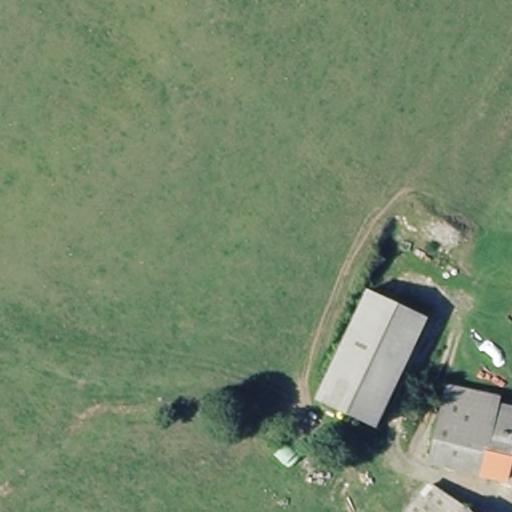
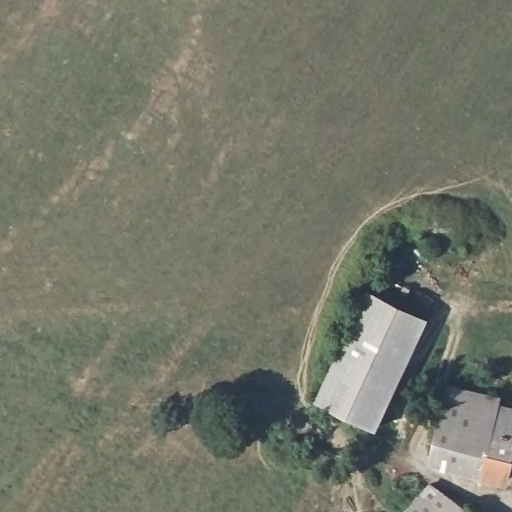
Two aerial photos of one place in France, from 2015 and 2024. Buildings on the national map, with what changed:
unchanged [(382,423),(316,401),(352,310),(360,290),(425,316),(413,345),(382,423)]
unchanged [(498,400),(497,407),(512,411),(512,441),(502,478),(430,458),(452,387),(498,400)]
unchanged [(469,512),(406,512),(403,510),(430,482),(469,512)]

